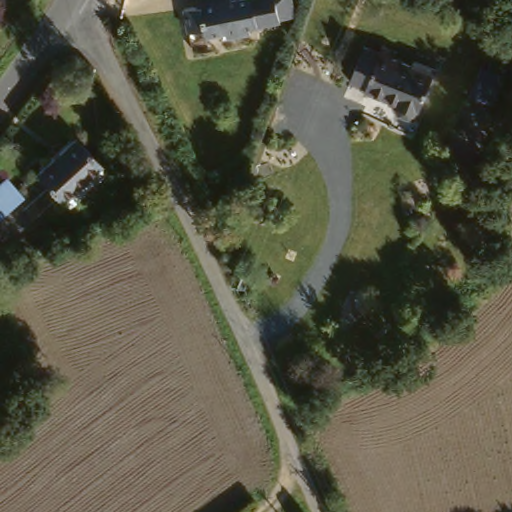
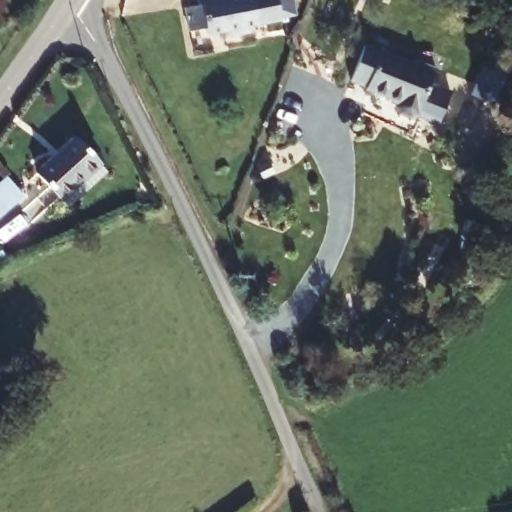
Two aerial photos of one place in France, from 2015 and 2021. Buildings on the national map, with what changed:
unchanged [(291,11),(276,14),(274,9),(261,11),(263,22),(254,24),(254,30),(231,34),(229,30),(209,35),(208,28),(193,31),(189,6),(201,3),(201,0),(288,0),(291,11)]
unchanged [(401,48),(399,55),(418,63),(419,58),(441,67),(423,113),(416,116),(404,111),(401,105),(403,100),(371,87),(371,85),(356,79),(369,44),(386,50),(388,43),(401,48)]
unchanged [(74,204),(66,195),(41,169),(79,134),(104,160),(112,171),(74,204)]
unchanged [(28,196),(0,222),(0,188),(10,178),(28,196)]

